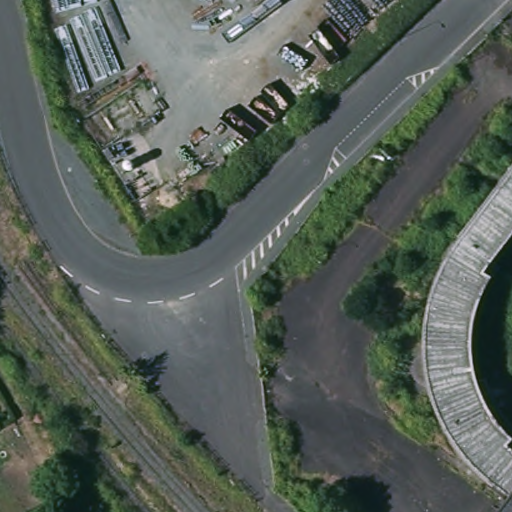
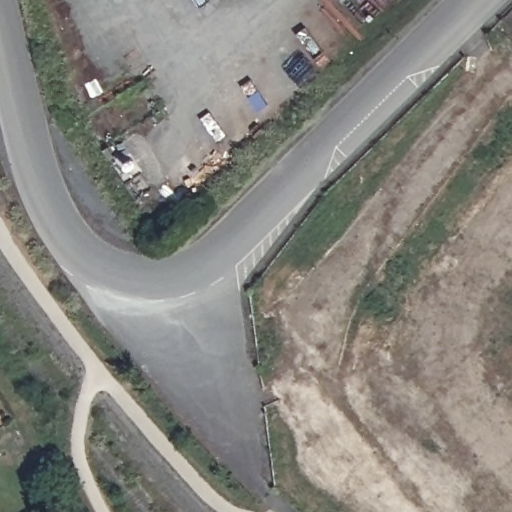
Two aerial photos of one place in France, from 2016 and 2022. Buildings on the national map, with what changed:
demolished [(493,478),(469,455),(462,448),(453,435),(445,423),(437,405),(433,393),(430,381),(427,357),(426,344),(426,332),(427,318),(430,301),(435,287),(439,275),(446,261),(456,247),(478,216),(512,173),(512,236),(493,260),(499,265),(488,278),(483,288),(478,300),(475,312),(472,327),(471,343),(473,360),(476,377),(484,375),(488,388),(493,400),(501,412),(512,423),(512,512),(496,512),(510,493),(493,478)]

